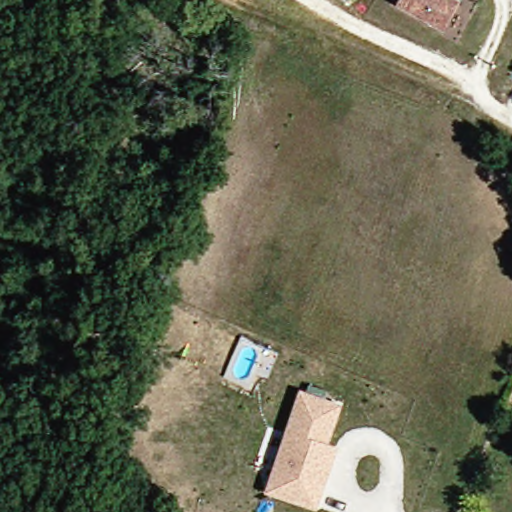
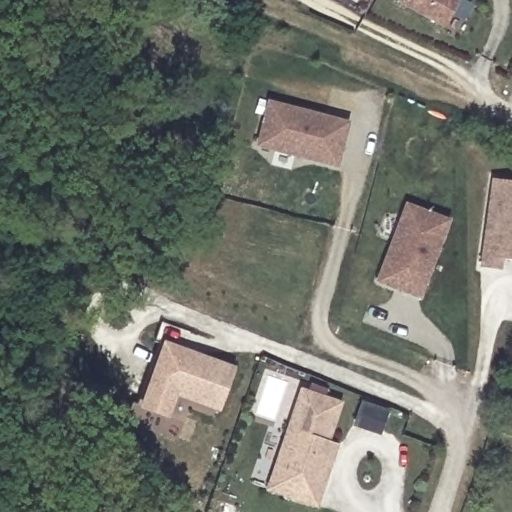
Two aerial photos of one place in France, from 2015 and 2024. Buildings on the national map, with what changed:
unchanged [(399,0),(462,0),(447,26),(425,14),(399,0)]
new [(338,167),(259,144),(272,102),(350,125),(338,167)]
new [(512,180),(512,260),(500,258),(498,269),(481,266),(493,177),(512,180)]
new [(410,206),(452,222),(422,299),(381,282),(410,206)]
new [(167,341),(235,366),(219,411),(176,394),(168,418),(143,409),(167,341)]
unchanged [(264,488),(301,387),(344,403),(331,440),(340,445),(317,509),(264,488)]

